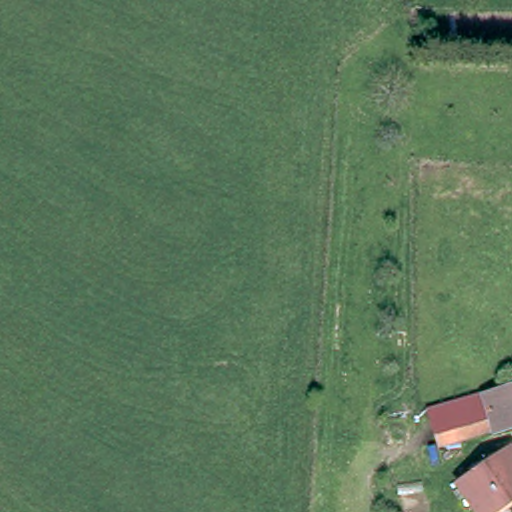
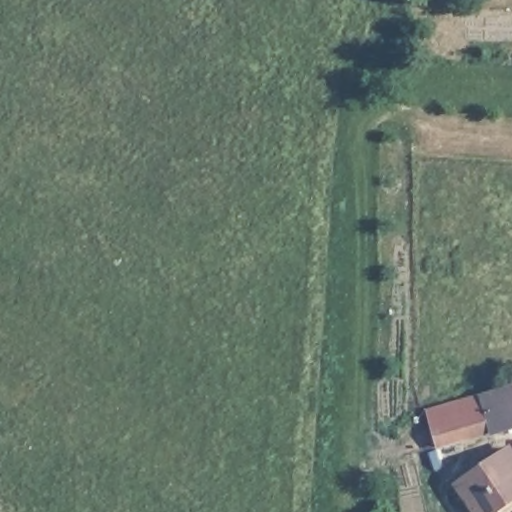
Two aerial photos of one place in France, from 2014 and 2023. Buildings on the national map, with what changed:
unchanged [(512,386),(512,429),(497,433),(495,430),(485,394),(512,386)]
unchanged [(445,445),(435,408),(485,394),(495,430),(445,445)]
unchanged [(503,512),(484,512),(465,485),(512,453),(512,506),(503,512)]

